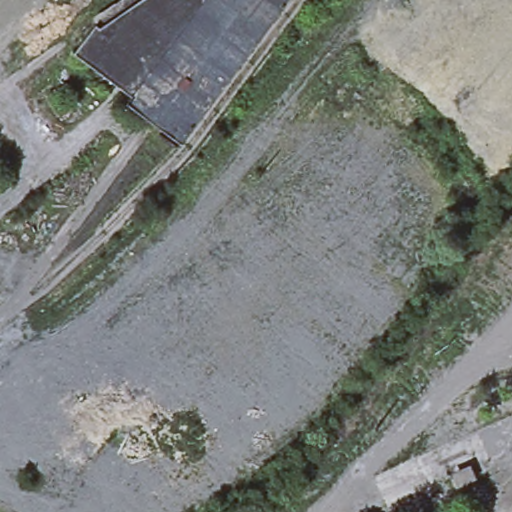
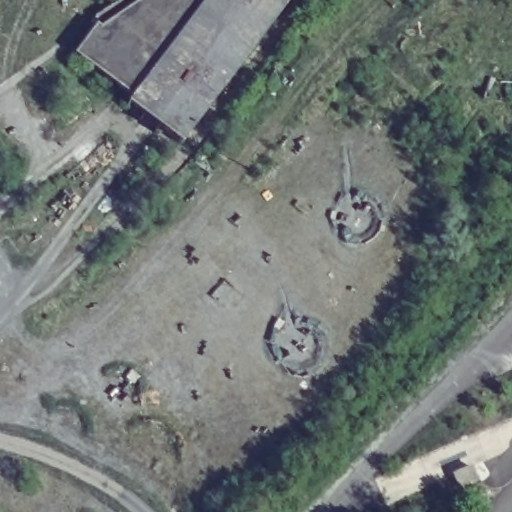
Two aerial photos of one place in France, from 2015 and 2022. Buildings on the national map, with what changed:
unchanged [(71,50),(97,10),(111,0),(284,0),(178,143),(71,50)]

